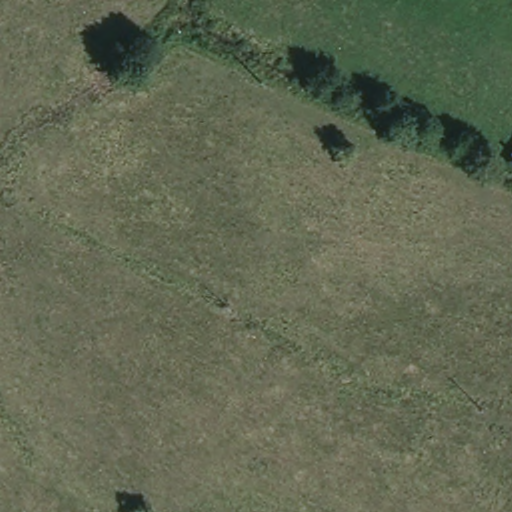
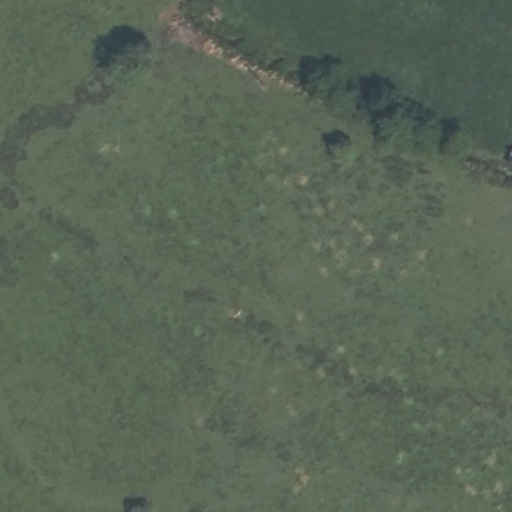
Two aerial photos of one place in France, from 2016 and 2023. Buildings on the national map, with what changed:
unchanged [(495,139),(512,148),(512,151),(507,164),(487,154),(495,139)]

